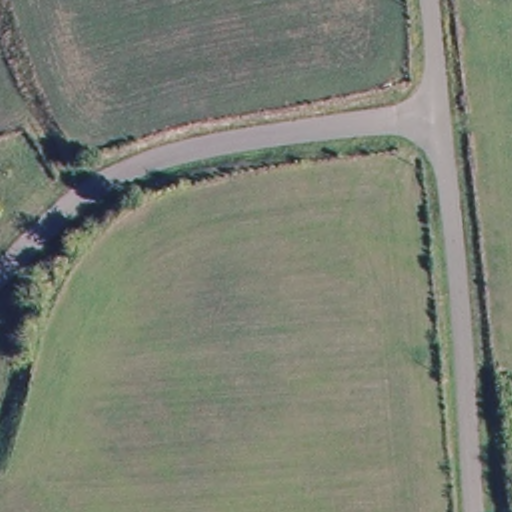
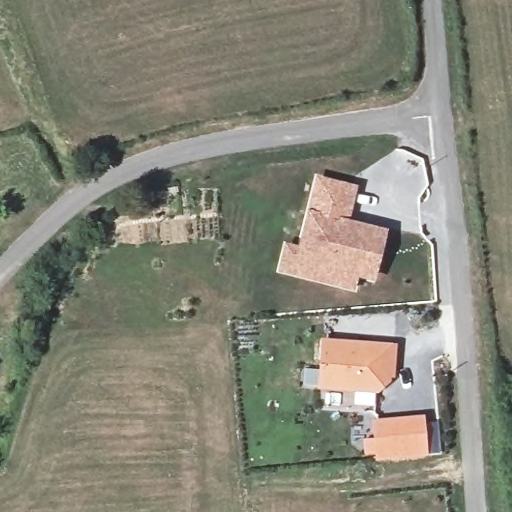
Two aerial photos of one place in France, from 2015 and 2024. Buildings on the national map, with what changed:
new [(278,272),(285,242),(298,246),(315,174),(358,185),(350,219),(388,230),(375,281),(358,277),(354,291),(278,272)]
new [(318,388),(321,338),(396,343),(393,378),(377,393),(318,388)]
new [(373,437),(371,418),(425,413),(427,422),(438,421),(442,453),(375,458),(374,455),(364,455),(363,438),(373,437)]

